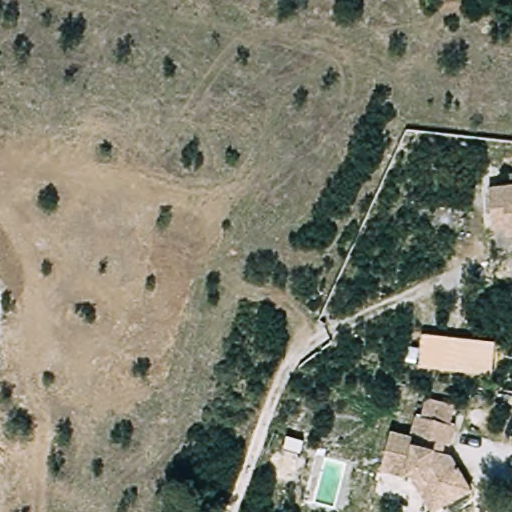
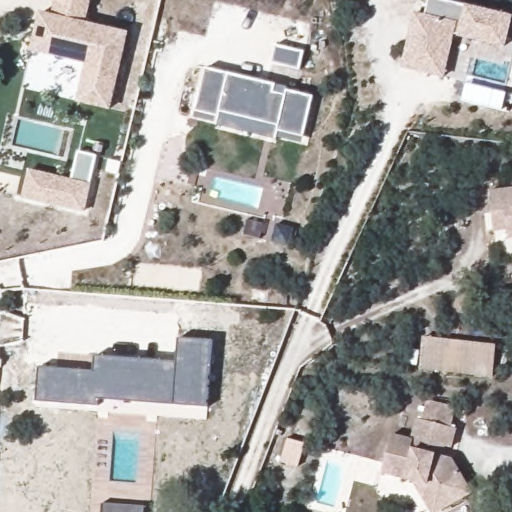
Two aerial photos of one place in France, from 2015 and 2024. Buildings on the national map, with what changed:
new [(39,9),(51,11),(54,0),(88,0),(83,19),(126,29),(108,104),(76,97),(86,59),(30,46),(37,18),(39,9)]
new [(429,71),(399,64),(404,41),(407,31),(412,11),(421,13),(425,0),(449,0),(508,14),(501,44),(450,31),(444,56),(439,74),(429,71)]
new [(274,43),(302,50),(298,68),(269,61),(274,43)]
new [(203,68),(274,85),(271,93),(283,96),(284,91),(311,97),(301,137),(275,131),(276,123),(218,110),(217,114),(193,108),(203,68)]
unchanged [(512,186),(512,238),(506,238),(506,230),(494,231),(489,188),(512,186)]
unchanged [(499,343),(495,377),(423,367),(426,335),(499,343)]
new [(208,407),(101,398),(100,405),(37,401),(40,366),(94,371),(95,355),(178,360),(180,337),(213,340),(208,407)]
unchanged [(410,438),(416,418),(421,419),(429,400),(459,407),(452,427),(460,429),(453,458),(454,459),(475,493),(442,512),(427,512),(410,482),(379,474),(389,433),(410,438)]

